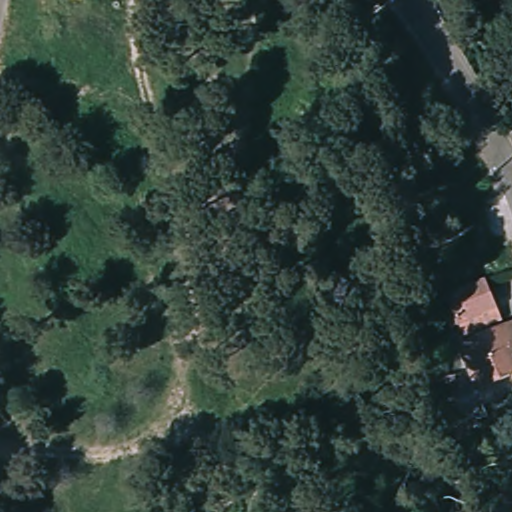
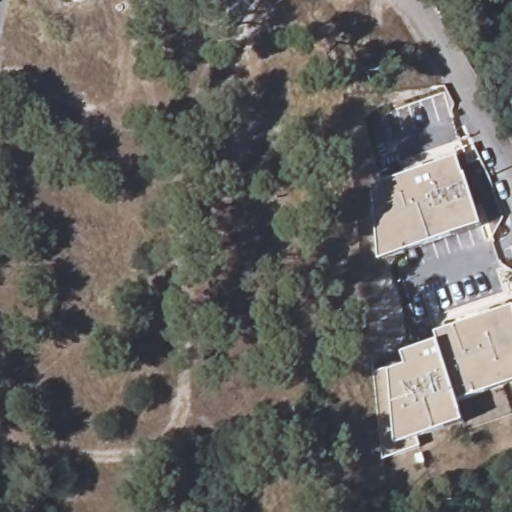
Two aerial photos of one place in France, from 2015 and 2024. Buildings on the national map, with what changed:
new [(463,176),(464,175),(481,225),(376,259),(371,185),(456,157),(463,176)]
demolished [(459,325),(451,328),(447,317),(454,314),(447,295),(486,280),(498,310),(459,325)]
new [(401,356),(399,351),(436,339),(433,330),(512,306),(512,380),(456,395),(464,421),(416,437),(421,447),(382,460),(373,373),(401,356)]
demolished [(478,391),(459,347),(512,325),(512,376),(478,391)]

